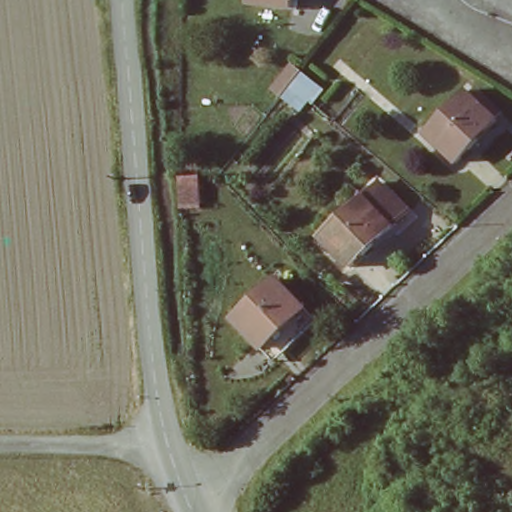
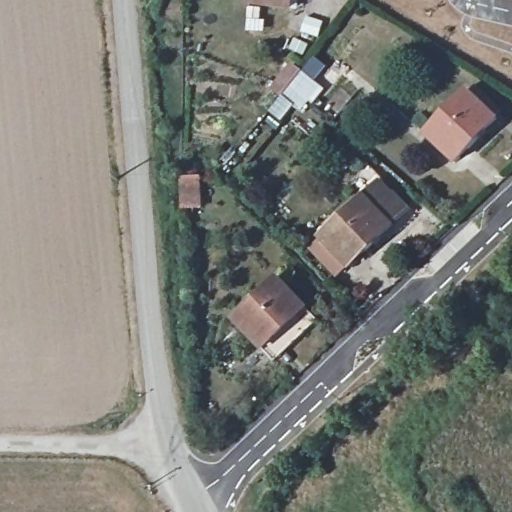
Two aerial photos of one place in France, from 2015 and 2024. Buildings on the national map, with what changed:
unchanged [(297,11),(291,10),(250,4),(251,0),(299,0),(297,11)]
unchanged [(282,97),(273,89),(291,66),(300,73),(319,87),(309,99),(300,111),(282,97)]
unchanged [(425,134),(466,91),(496,119),(455,162),(425,134)]
unchanged [(181,178),(198,177),(200,208),(183,210),(181,178)]
unchanged [(323,240),(320,237),(364,197),(392,227),(349,267),(347,265),(336,276),(312,250),(323,240)]
unchanged [(257,345),(229,315),(272,274),(300,303),(312,317),(288,340),(269,357),(257,345)]

